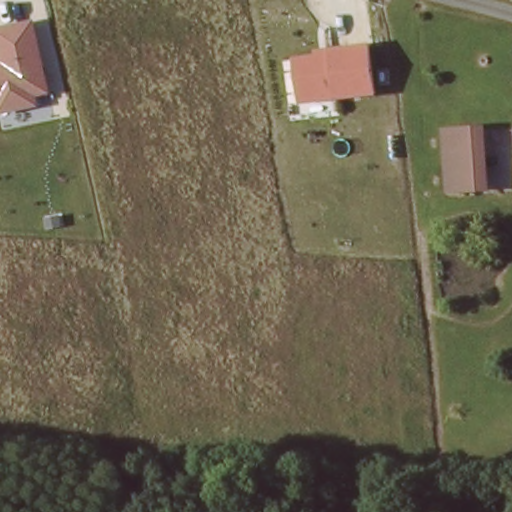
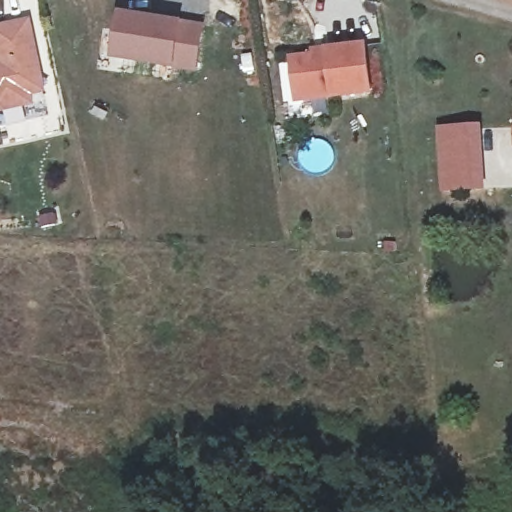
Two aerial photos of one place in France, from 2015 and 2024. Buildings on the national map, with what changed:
new [(178,69),(113,59),(120,12),(183,22),(206,25),(198,72),(178,69)]
unchanged [(33,97),(34,105),(0,112),(0,25),(32,20),(47,95),(33,97)]
unchanged [(374,95),(296,104),(291,56),(314,54),(313,47),(368,41),(374,95)]
unchanged [(485,120),(479,181),(434,192),(434,130),(485,120)]

